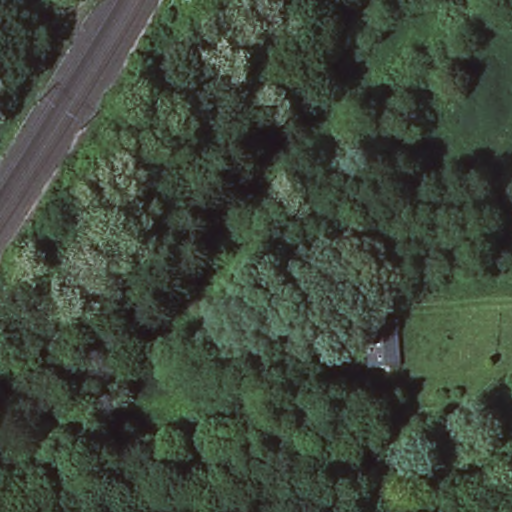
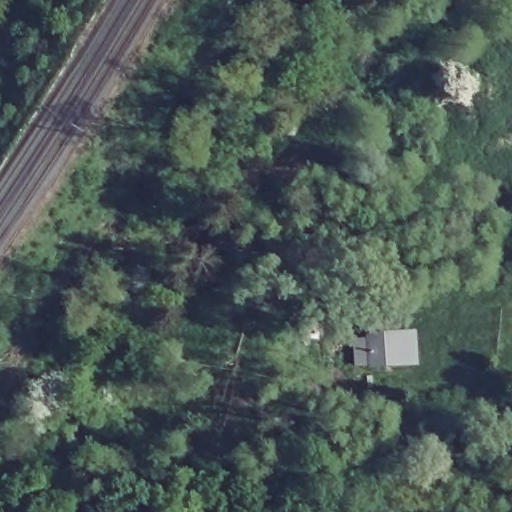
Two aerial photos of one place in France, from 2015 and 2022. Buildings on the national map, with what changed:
unchanged [(366,370),(361,337),(397,333),(399,367),(366,370)]

